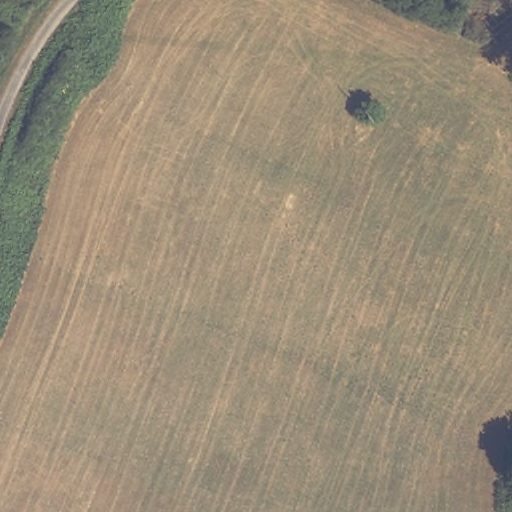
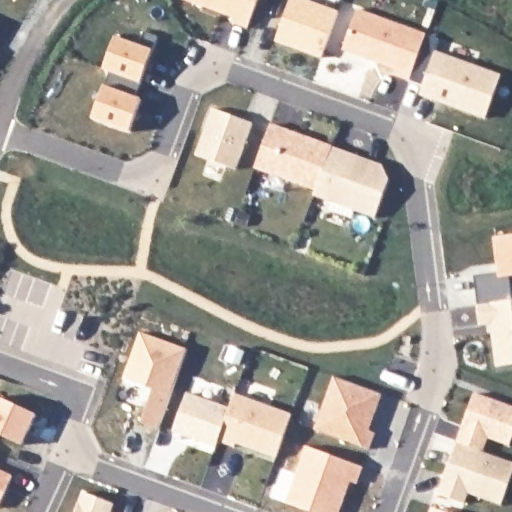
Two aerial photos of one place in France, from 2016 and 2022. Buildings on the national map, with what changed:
new [(259,0),(249,30),(232,24),(233,18),(182,1),(182,0),(259,0)]
new [(308,0),(340,11),(324,59),(276,42),(291,0),(308,0)]
new [(357,9),(426,34),(409,80),(394,75),(396,69),(342,50),(357,9)]
new [(104,86),(107,87),(111,74),(103,71),(116,36),(140,45),(144,32),(157,37),(154,51),(138,97),(142,99),(130,134),(91,120),(104,86)]
new [(434,52),(499,76),(483,117),(418,94),(434,52)]
new [(213,109),(254,122),(237,171),(195,157),(213,109)]
new [(268,126),(329,148),(313,191),(252,169),(268,126)]
new [(313,191),(329,148),(379,167),(386,181),(372,219),(311,197),(313,191)]
new [(512,234),(512,277),(498,278),(494,237),(512,234)]
new [(512,363),(493,366),(488,323),(477,325),(473,305),(512,300),(512,363)]
new [(138,336),(184,352),(155,432),(137,426),(150,392),(120,382),(138,336)]
new [(331,380),(378,397),(365,433),(371,436),(365,452),(311,432),(331,380)]
new [(512,406),(512,445),(512,447),(488,437),(483,452),(512,462),(512,479),(503,506),(469,493),(466,504),(439,494),(475,392),(512,406)]
new [(184,397),(226,412),(215,443),(212,450),(170,435),(184,397)]
new [(226,412),(232,397),(288,418),(272,461),(231,446),(229,450),(215,443),(226,412)]
new [(31,415),(17,445),(0,437),(0,401),(31,415)]
new [(303,450),(359,470),(353,487),(347,485),(336,512),(298,512),(282,506),(303,450)]
new [(14,476),(0,506),(0,470),(14,476)]
new [(83,489),(114,501),(111,511),(115,512),(74,512),(83,489)]

